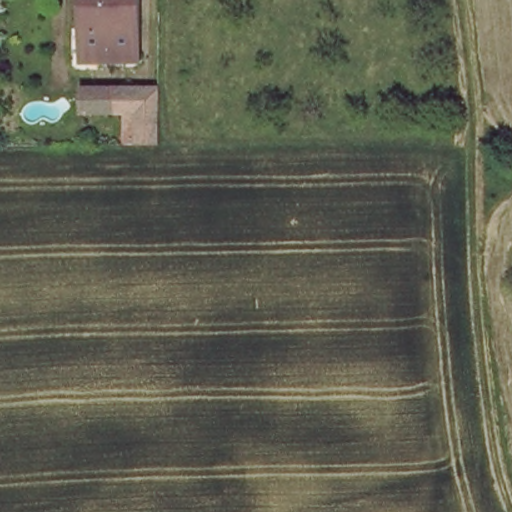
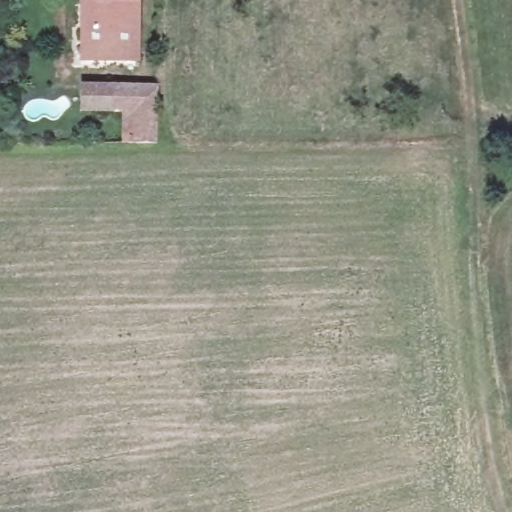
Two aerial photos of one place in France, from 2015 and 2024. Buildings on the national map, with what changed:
unchanged [(132,65),(80,61),(84,0),(138,0),(132,65)]
unchanged [(128,121),(105,119),(78,117),(81,89),(107,91),(155,94),(153,142),(126,143),(128,121)]

